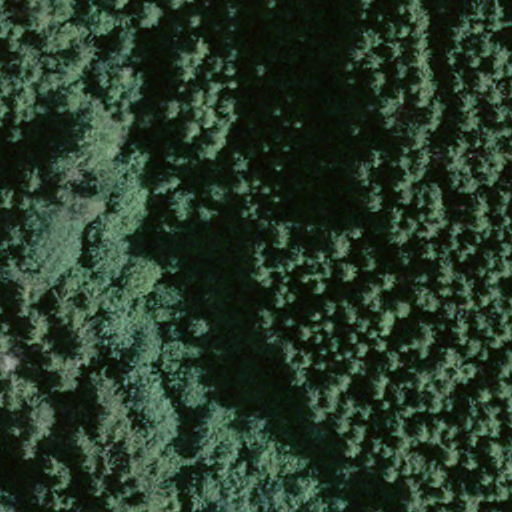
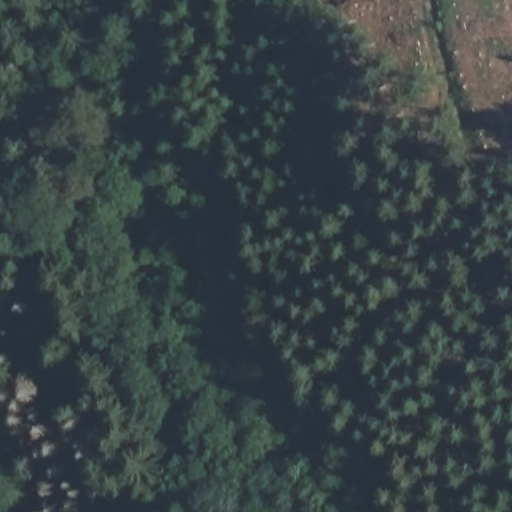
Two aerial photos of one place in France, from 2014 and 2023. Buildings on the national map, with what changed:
[]

